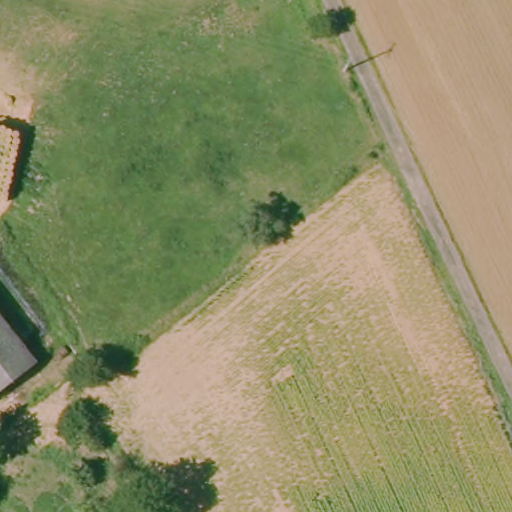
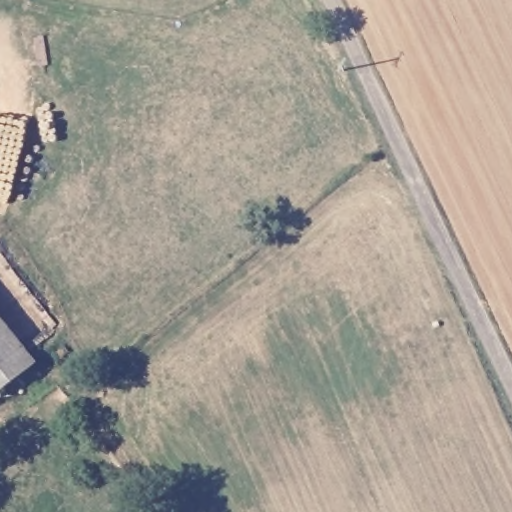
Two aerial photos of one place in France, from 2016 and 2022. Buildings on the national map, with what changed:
unchanged [(0,403),(0,314),(44,369),(0,403)]

